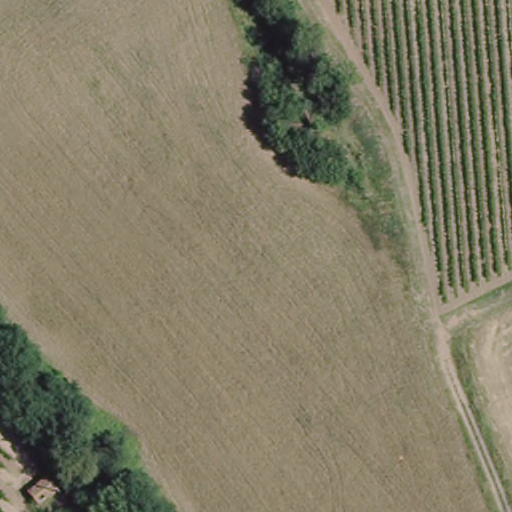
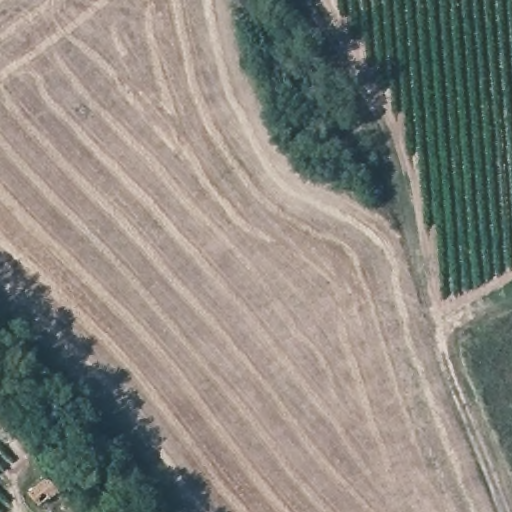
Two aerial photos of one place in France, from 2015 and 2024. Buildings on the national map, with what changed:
unchanged [(312,128),(305,131),(288,140),(278,121),(302,110),(312,128)]
unchanged [(38,509),(28,498),(45,483),(55,494),(38,509)]

